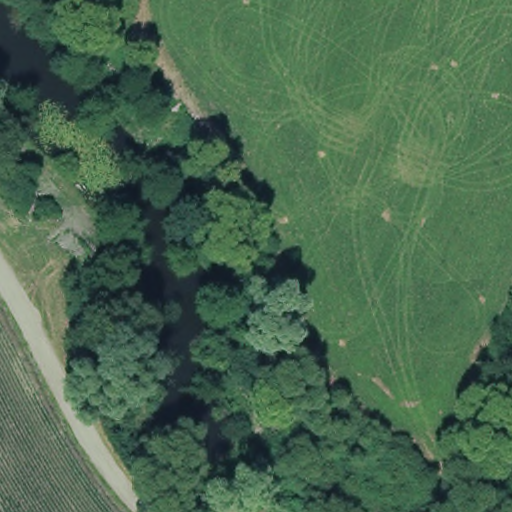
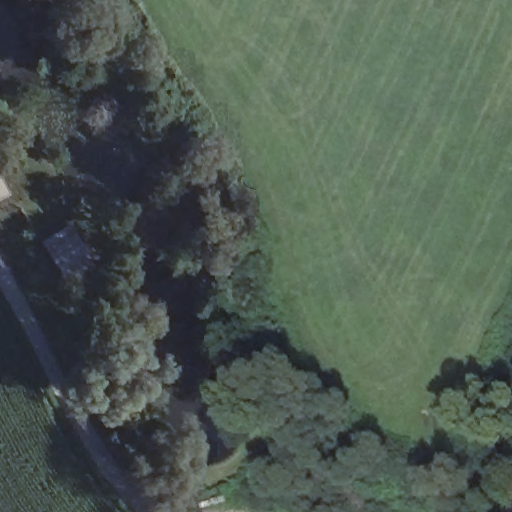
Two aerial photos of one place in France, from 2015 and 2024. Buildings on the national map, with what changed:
unchanged [(50,207),(30,181),(50,164),(70,185),(50,207)]

